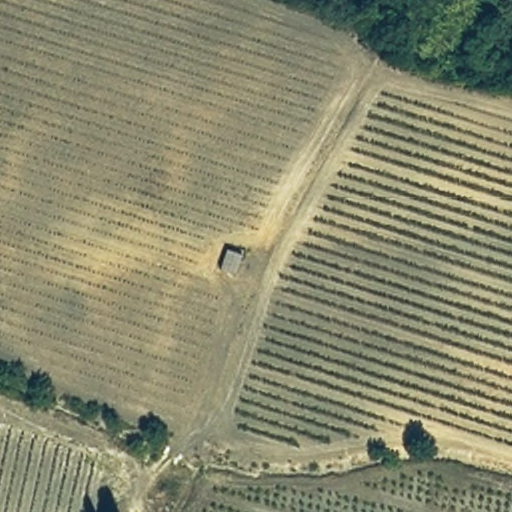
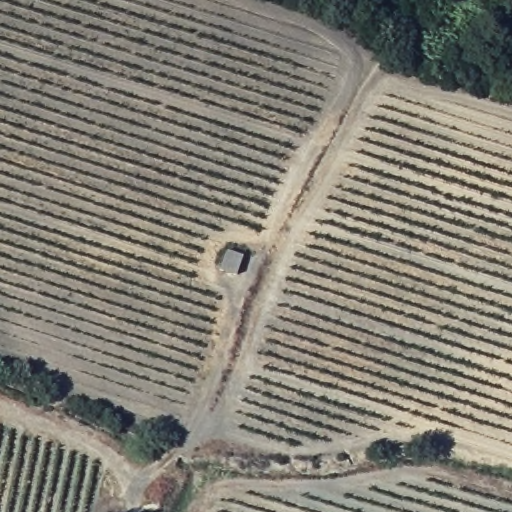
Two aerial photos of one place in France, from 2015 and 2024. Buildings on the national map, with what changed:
unchanged [(237,277),(218,271),(225,247),(243,252),(237,277)]

